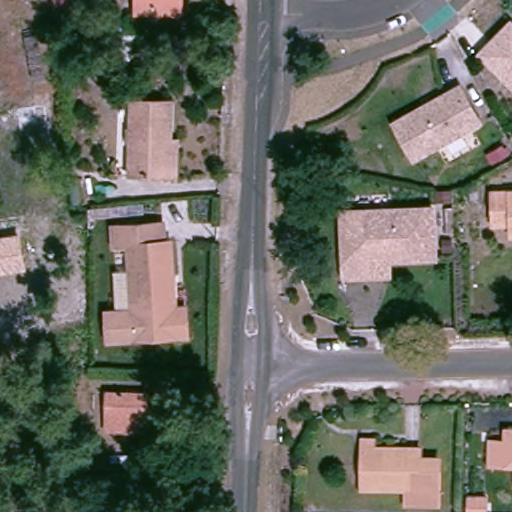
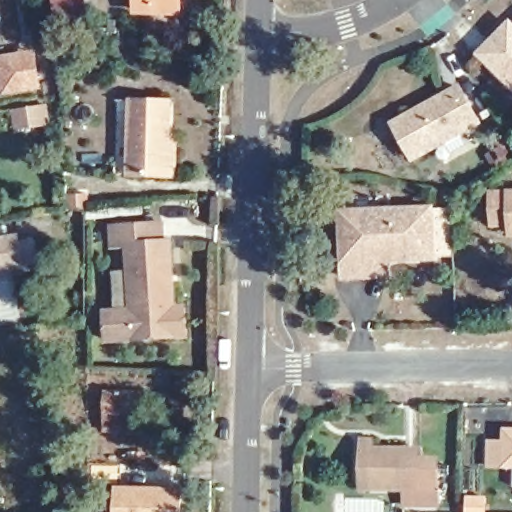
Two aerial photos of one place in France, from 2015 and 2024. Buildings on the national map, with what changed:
new [(54,13),(52,0),(91,0),(91,8),(54,13)]
unchanged [(143,0),(178,0),(178,7),(142,6),(143,0)]
unchanged [(499,36),(508,26),(512,30),(512,89),(479,56),(499,36)]
new [(36,49),(43,90),(2,95),(0,79),(0,55),(36,49)]
unchanged [(461,88),(481,123),(416,160),(396,124),(461,88)]
unchanged [(136,96),(175,98),(175,136),(174,171),(135,169),(136,96)]
unchanged [(493,195),(507,194),(512,194),(512,225),(495,226),(493,195)]
unchanged [(375,271),(350,273),(346,207),(437,204),(440,253),(392,255),(393,270),(375,271)]
unchanged [(119,246),(104,247),(102,227),(153,224),(154,243),(161,243),(164,279),(157,279),(161,337),(99,341),(97,315),(122,313),(119,246)]
unchanged [(20,234),(27,272),(0,276),(0,237),(20,234)]
unchanged [(145,391),(145,409),(153,409),(153,423),(112,423),(113,390),(145,391)]
unchanged [(490,437),(505,437),(505,425),(512,425),(512,461),(490,461),(490,437)]
unchanged [(367,463),(367,434),(378,435),(378,443),(408,444),(425,444),(425,457),(444,458),(443,501),(411,501),(411,485),(380,484),(366,484),(367,463)]
new [(115,485),(184,488),(183,512),(112,512),(115,485)]
unchanged [(480,500),(480,512),(464,512),(464,500),(480,500)]

